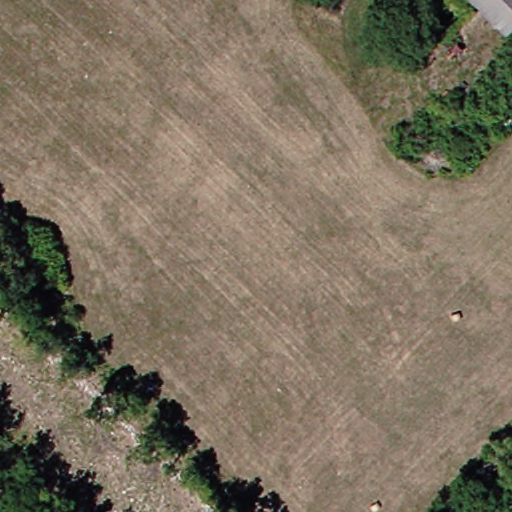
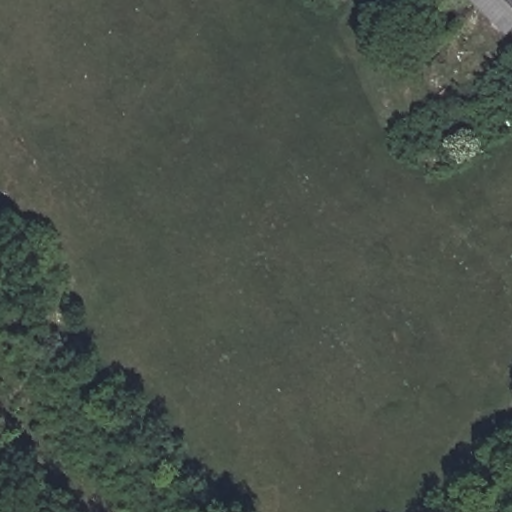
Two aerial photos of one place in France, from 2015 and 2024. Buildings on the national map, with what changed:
unchanged [(471,7),(420,57),(407,49),(401,55),(393,45),(434,0),(512,0),(512,20),(500,32),(471,7)]
unchanged [(446,85),(437,95),(424,85),(433,75),(446,85)]
unchanged [(455,130),(429,105),(434,99),(443,107),(457,94),(474,108),(455,130)]

